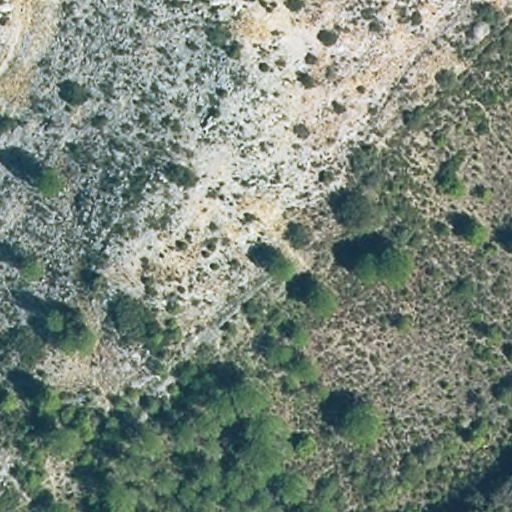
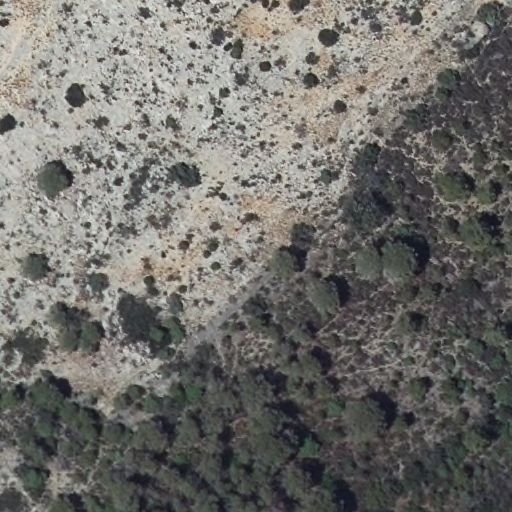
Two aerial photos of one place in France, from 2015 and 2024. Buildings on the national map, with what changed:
unchanged [(475,49),(466,37),(479,27),(488,38),(475,49)]

